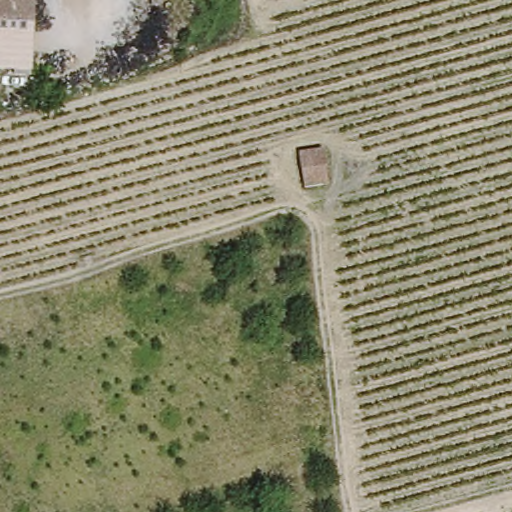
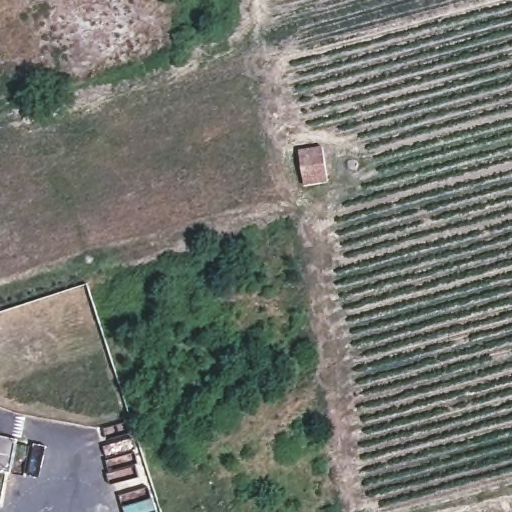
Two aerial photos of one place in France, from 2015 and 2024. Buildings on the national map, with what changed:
demolished [(0,69),(0,0),(28,0),(27,69),(0,69)]
unchanged [(301,185),(298,152),(321,149),(324,181),(301,185)]

